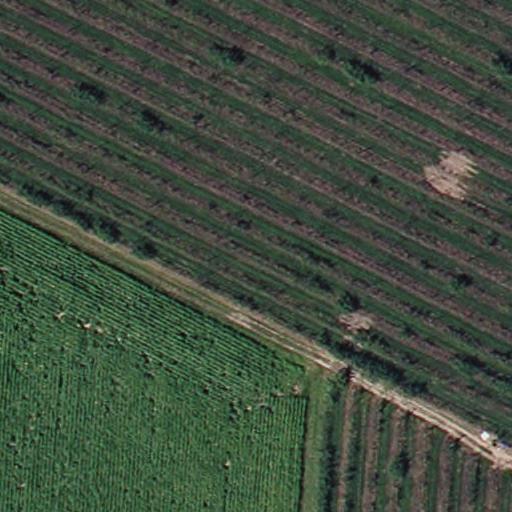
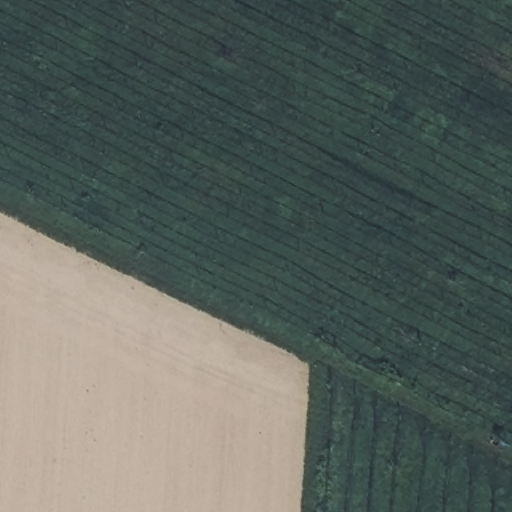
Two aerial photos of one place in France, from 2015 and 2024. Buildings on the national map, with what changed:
[]

